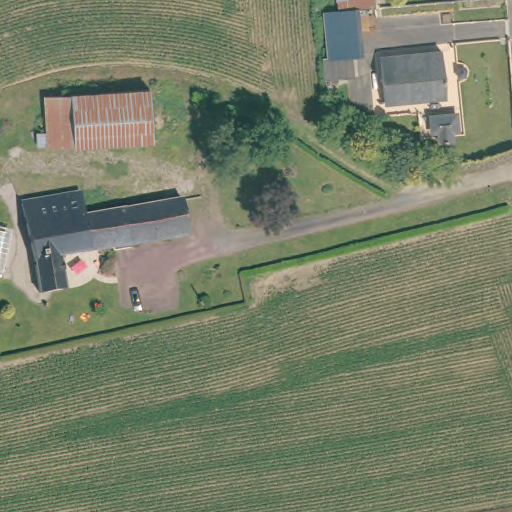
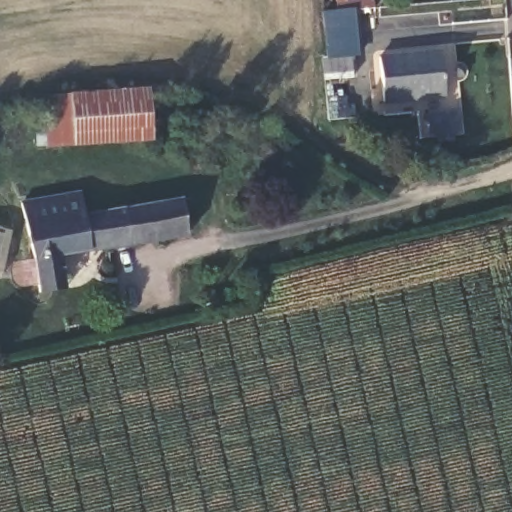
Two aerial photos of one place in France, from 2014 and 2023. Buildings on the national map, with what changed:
unchanged [(346,62),(347,82),(318,85),(316,64),(320,64),(316,20),(328,19),(327,7),(366,5),(367,17),(347,18),(352,62),(346,62)]
unchanged [(386,96),(382,56),(442,51),(445,91),(386,96)]
unchanged [(103,85),(147,80),(150,81),(151,90),(154,132),(49,140),(46,92),(52,89),(103,85)]
unchanged [(195,129),(154,132),(151,90),(167,89),(192,87),(192,99),(195,129)]
unchanged [(424,120),(449,119),(451,136),(426,138),(424,120)]
unchanged [(44,286),(42,277),(30,195),(86,185),(90,207),(188,193),(193,228),(65,247),(69,273),(71,283),(44,286)]

